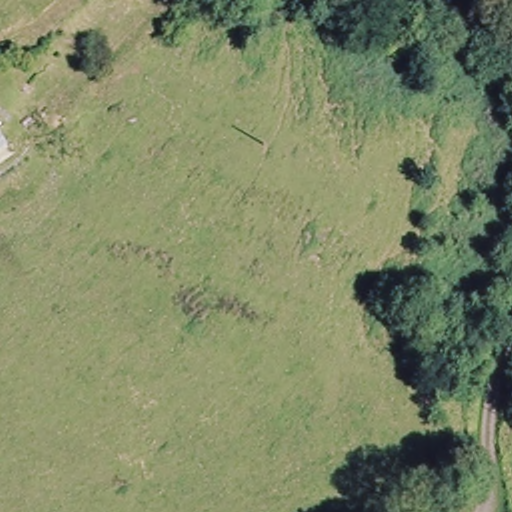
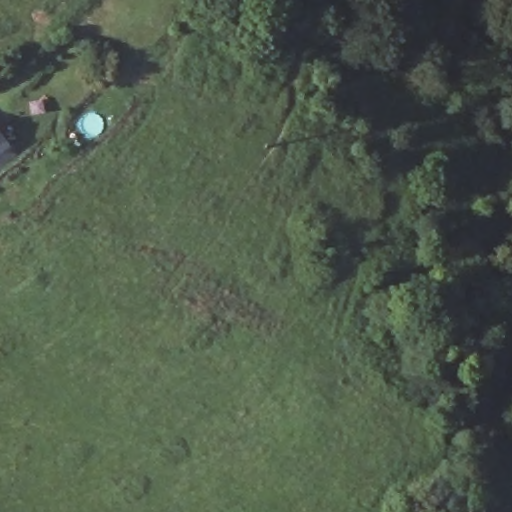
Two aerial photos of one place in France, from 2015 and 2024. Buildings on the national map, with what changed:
unchanged [(5,129),(0,132),(0,123),(5,129)]
unchanged [(6,150),(0,155),(0,143),(6,150)]

